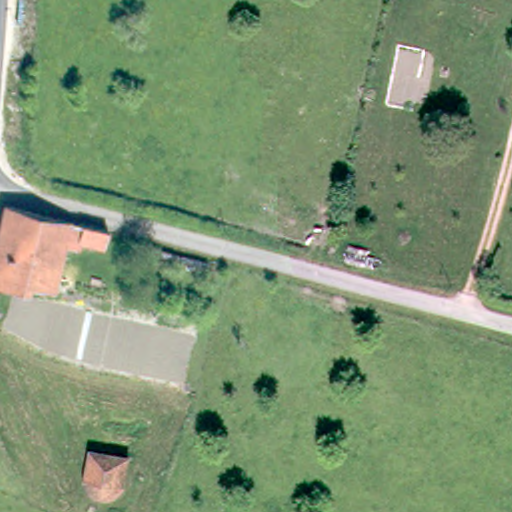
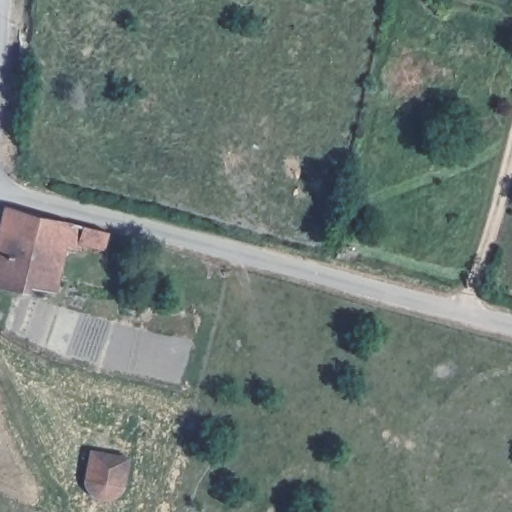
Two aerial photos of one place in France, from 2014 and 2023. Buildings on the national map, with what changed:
unchanged [(63,246),(53,292),(28,287),(27,292),(0,287),(0,235),(7,207),(85,226),(108,232),(103,249),(82,243),(80,250),(63,246)]
unchanged [(86,486),(82,476),(87,448),(124,454),(120,479),(115,487),(107,493),(92,491),(86,486)]

